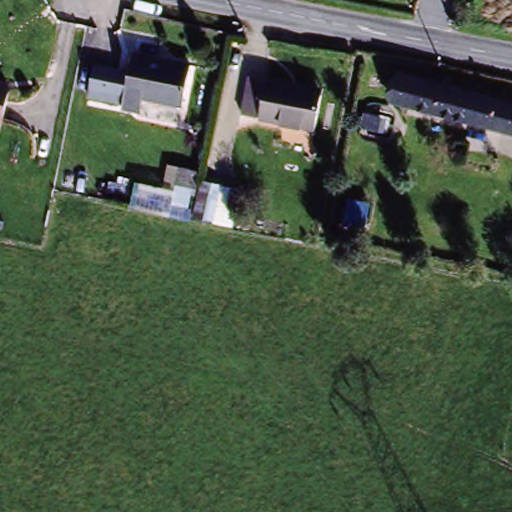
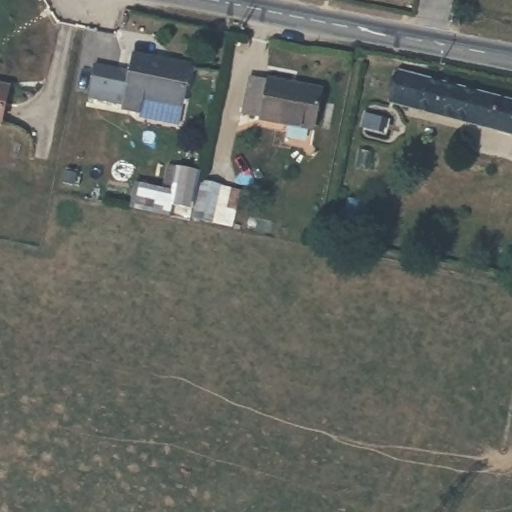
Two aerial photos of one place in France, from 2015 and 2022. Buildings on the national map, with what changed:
unchanged [(193,60),(185,100),(128,89),(126,98),(90,91),(96,61),(131,68),(136,48),(193,60)]
unchanged [(240,117),(246,75),(299,85),(321,90),(320,98),(316,132),(240,117)]
unchanged [(406,78),(512,105),(512,137),(396,108),(406,78)]
unchanged [(11,89),(3,123),(0,122),(0,86),(11,89)]
unchanged [(198,170),(190,208),(174,205),(182,166),(198,170)]
unchanged [(228,185),(221,220),(199,215),(207,183),(228,185)]
unchanged [(359,202),(356,226),(335,222),(339,199),(359,202)]

